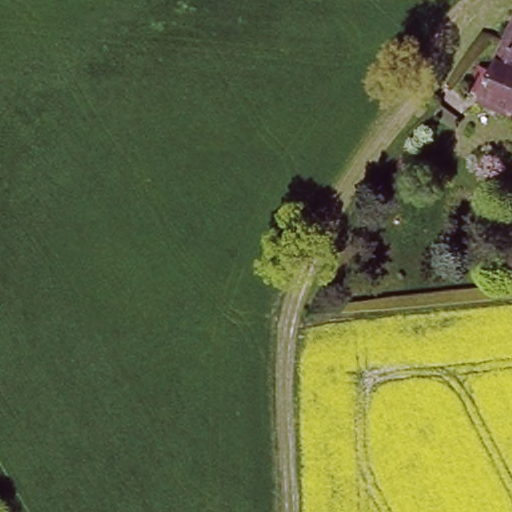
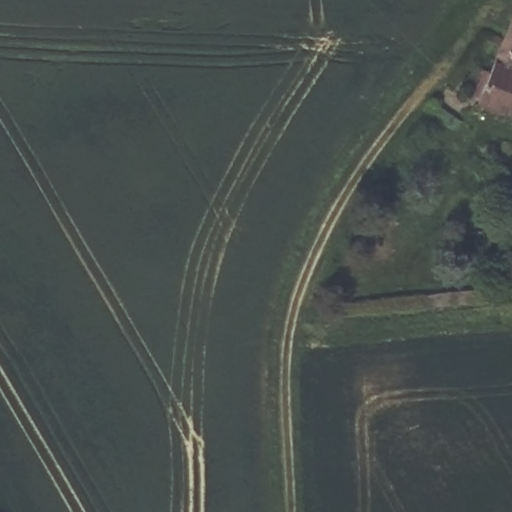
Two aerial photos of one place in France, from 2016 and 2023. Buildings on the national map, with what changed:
unchanged [(482,96),(470,91),(480,64),(493,69),(512,23),(512,111),(482,98),(482,96)]

